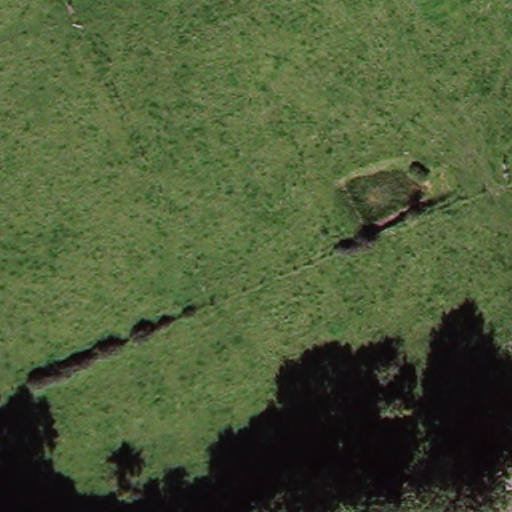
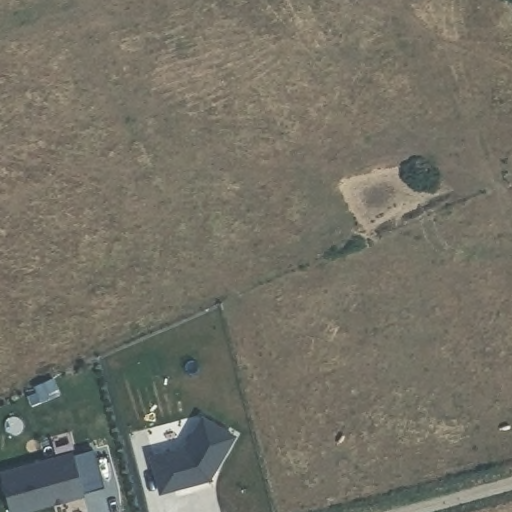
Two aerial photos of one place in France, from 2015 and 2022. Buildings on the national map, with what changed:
new [(236,435),(210,478),(160,494),(147,453),(183,445),(200,414),(236,435)]
new [(84,492),(18,512),(9,512),(0,482),(0,468),(70,448),(84,492)]

